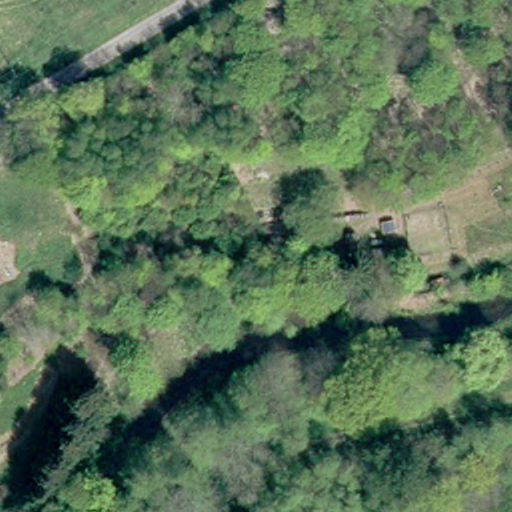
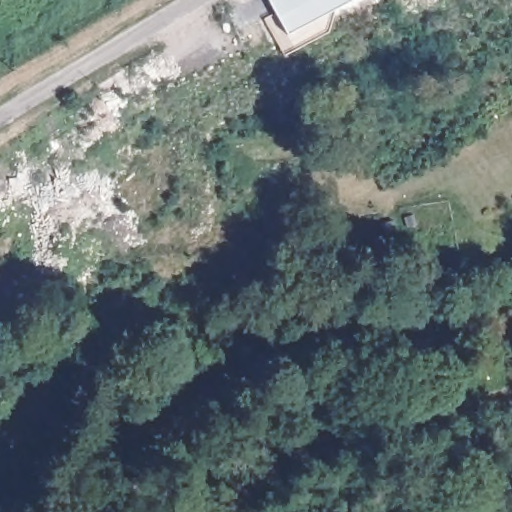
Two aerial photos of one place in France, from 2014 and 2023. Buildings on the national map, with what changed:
new [(274,0),(353,0),(286,36),(268,3),(274,0)]

